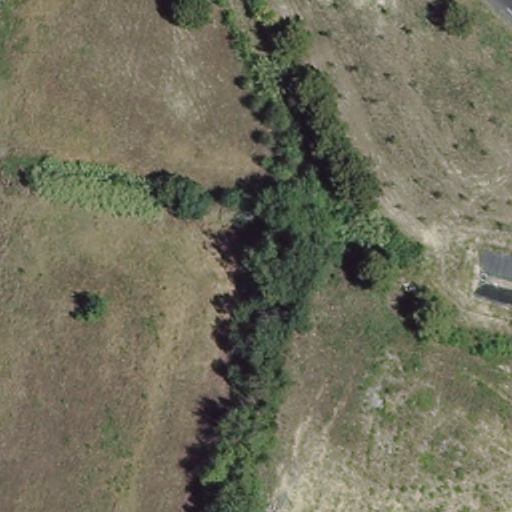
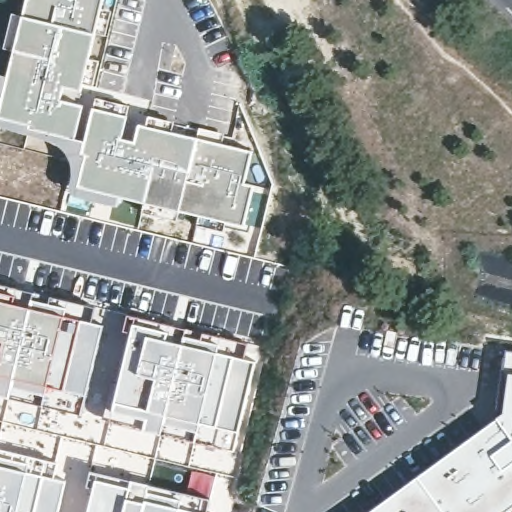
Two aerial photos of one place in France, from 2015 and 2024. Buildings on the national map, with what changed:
new [(224,141),(250,149),(243,183),(253,185),(245,227),(119,197),(116,206),(74,194),(79,171),(72,170),(67,155),(62,149),(57,144),(0,125),(0,74),(6,75),(12,50),(2,47),(12,12),(21,14),(24,0),(105,0),(79,102),(93,104),(95,96),(130,105),(124,136),(134,138),(138,122),(147,123),(160,126),(197,135),(199,127),(225,135),(224,141)]
new [(40,294),(39,297),(60,304),(62,298),(85,304),(82,316),(104,324),(80,414),(40,406),(14,399),(0,396),(0,285),(40,294)]
new [(133,321),(212,339),(240,343),(237,353),(257,359),(249,400),(234,451),(195,439),(142,428),(109,417),(133,321)]
new [(506,369),(503,369),(505,348),(512,349),(512,512),(443,512),(417,476),(501,412),(506,369)]
new [(55,460),(52,475),(67,479),(59,512),(0,512),(0,447),(55,460)]
new [(210,499),(207,512),(87,512),(92,488),(87,487),(90,470),(210,499)]
new [(443,512),(366,512),(417,476),(443,512)]

